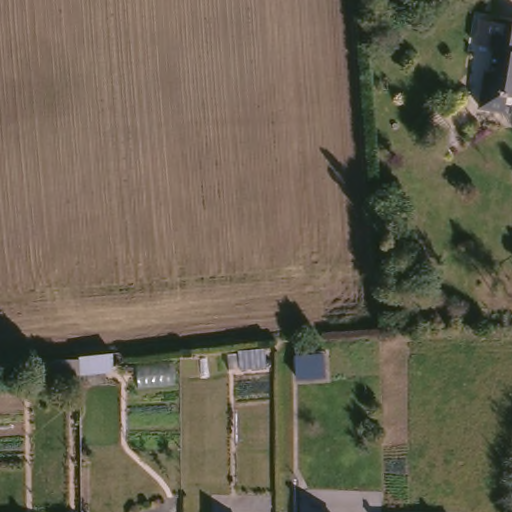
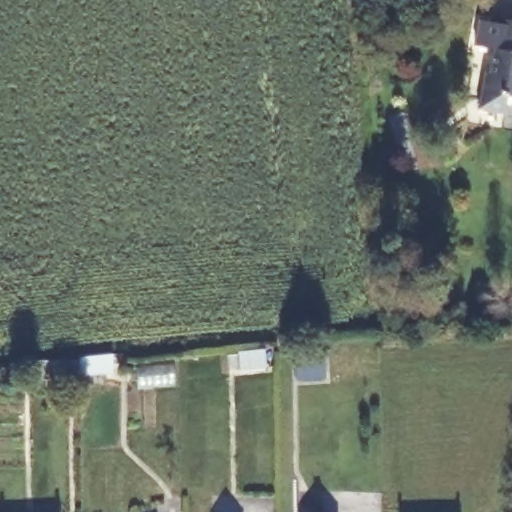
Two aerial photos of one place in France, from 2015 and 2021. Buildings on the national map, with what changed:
unchanged [(512,92),(509,109),(484,105),(490,68),(494,69),(503,14),(512,16),(512,92)]
unchanged [(37,377),(35,362),(78,358),(103,356),(111,355),(112,366),(79,368),(79,372),(37,377)]
unchanged [(289,387),(288,370),(287,364),(313,362),(313,368),(314,385),(289,387)]

